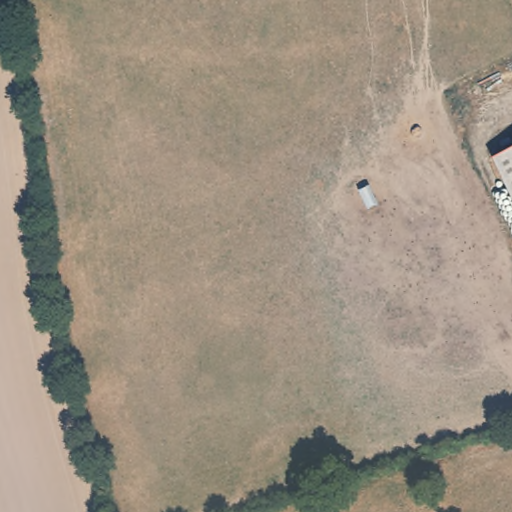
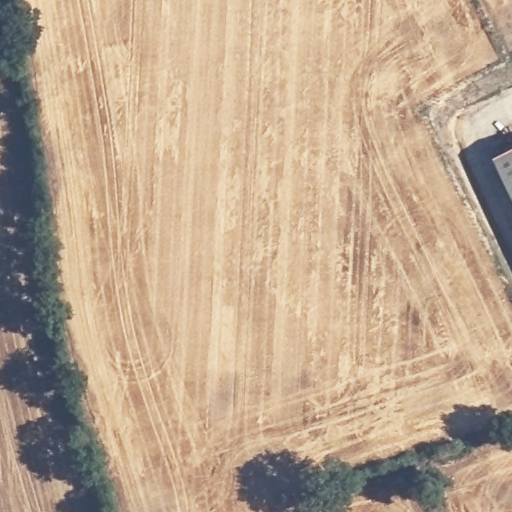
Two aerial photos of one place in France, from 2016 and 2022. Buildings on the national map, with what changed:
unchanged [(512,157),(512,218),(488,169),(512,157)]

